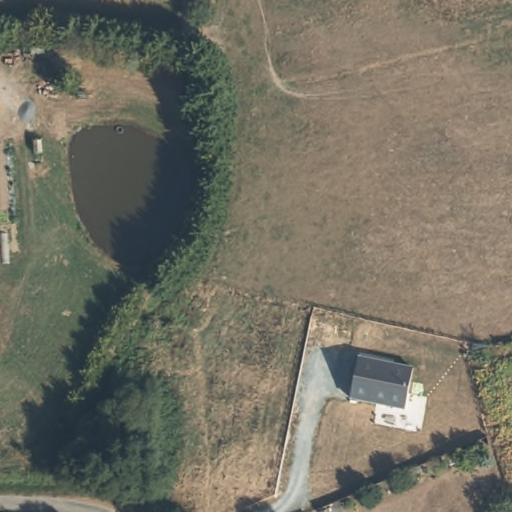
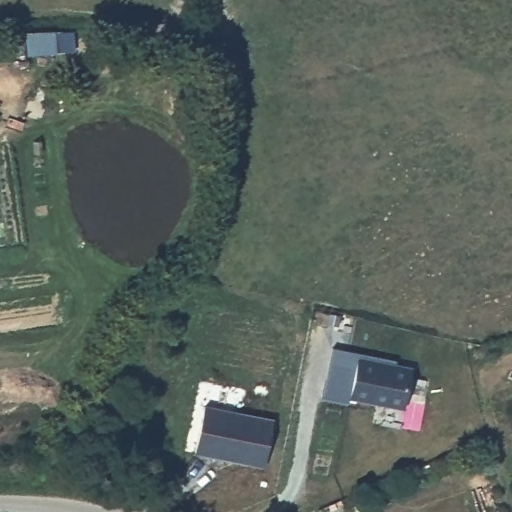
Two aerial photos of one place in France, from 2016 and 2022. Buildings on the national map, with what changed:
new [(360,353),(360,355),(349,399),(347,402),(322,398),(332,347),(360,353)]
unchanged [(403,410),(349,399),(360,355),(412,368),(403,410)]
new [(265,467),(194,453),(203,405),(274,418),(265,467)]

